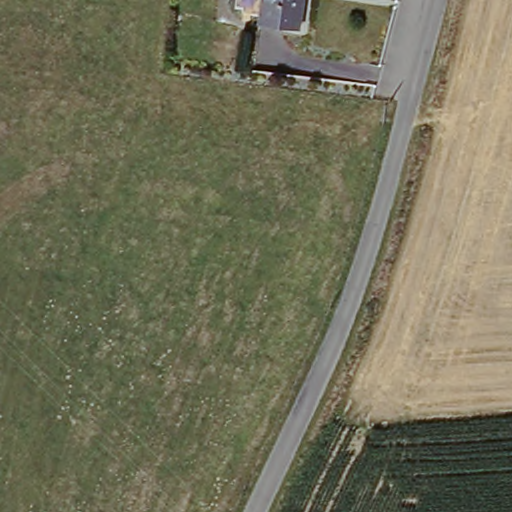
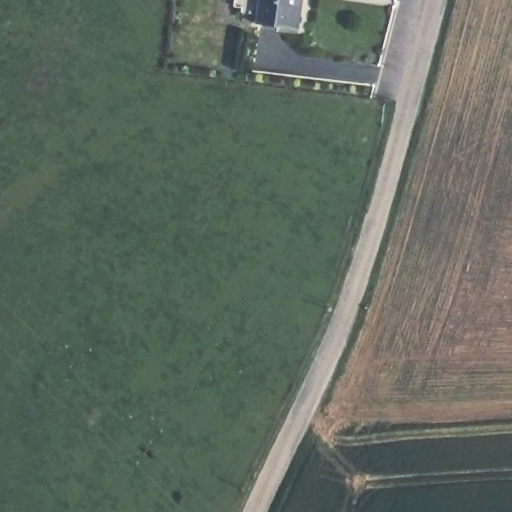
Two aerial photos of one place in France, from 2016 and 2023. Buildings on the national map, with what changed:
unchanged [(260,20),(265,0),(305,0),(297,31),(260,20)]

